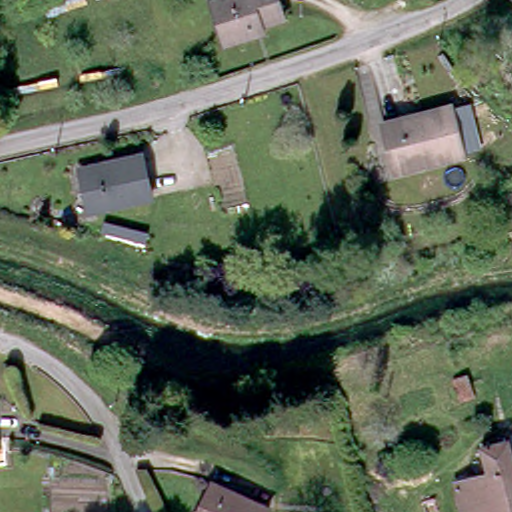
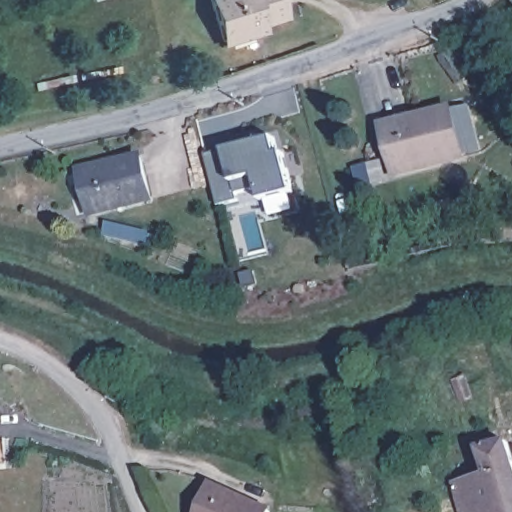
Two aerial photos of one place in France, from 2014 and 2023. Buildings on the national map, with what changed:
unchanged [(254,40),(241,44),(223,49),(219,35),(211,5),(210,0),(277,0),(284,26),(260,32),(262,38),(254,40)]
unchanged [(389,169),(378,120),(446,103),(458,152),(389,169)]
new [(226,150),(274,138),(279,155),(283,154),(292,192),(261,199),(259,187),(236,193),(238,200),(218,205),(206,155),(226,150)]
unchanged [(88,205),(80,164),(141,151),(149,192),(88,205)]
unchanged [(144,246),(101,234),(103,227),(104,222),(148,234),(146,240),(144,246)]
unchanged [(454,413),(448,391),(459,387),(466,410),(454,413)]
unchanged [(484,476),(477,447),(485,444),(484,438),(493,436),(494,442),(502,441),(512,474),(512,512),(457,512),(451,485),(484,476)]
unchanged [(266,512),(196,512),(210,481),(268,507),(266,512)]
unchanged [(428,512),(417,512),(427,510),(428,512)]

